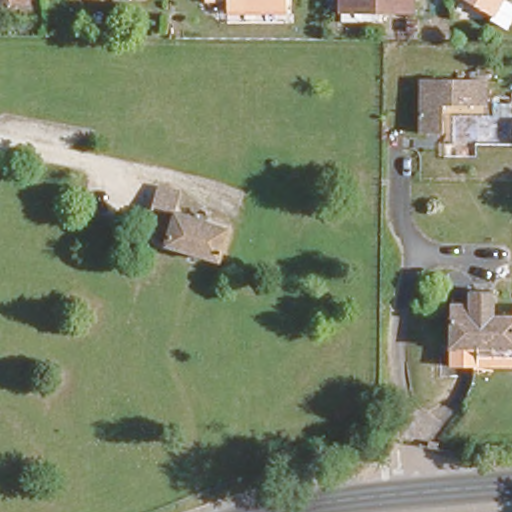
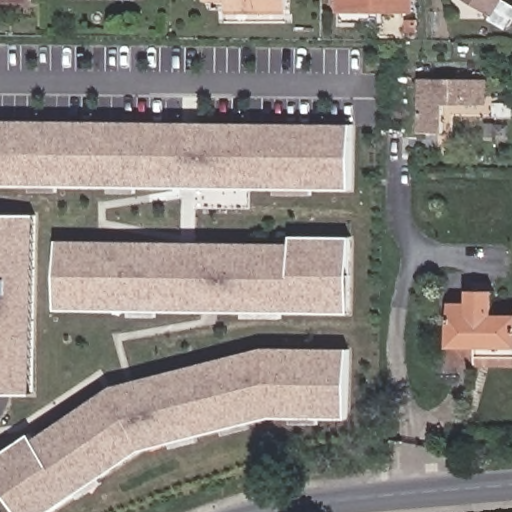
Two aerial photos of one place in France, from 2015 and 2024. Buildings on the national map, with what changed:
unchanged [(277,7),(220,6),(220,0),(278,0),(277,7)]
unchanged [(415,3),(333,5),(333,0),(415,0),(415,3)]
unchanged [(498,6),(489,0),(502,0),(498,6)]
unchanged [(485,95),(445,102),(441,139),(417,138),(416,73),(486,72),(485,95)]
new [(349,122),(349,192),(0,188),(0,121),(349,122)]
demolished [(171,206),(225,222),(216,254),(160,237),(164,225),(149,221),(154,206),(145,203),(152,182),(176,189),(171,206)]
new [(32,215),(31,397),(0,397),(0,215),(32,215)]
new [(288,242),(288,233),(350,235),(351,312),(55,308),(54,242),(288,242)]
unchanged [(448,365),(450,298),(468,298),(469,287),(494,287),(493,308),(512,308),(512,366),(483,365),(448,365)]
new [(31,440),(108,386),(260,348),(348,350),(345,418),(268,417),(135,449),(47,512),(17,512),(0,488),(0,452),(28,434),(31,440)]

